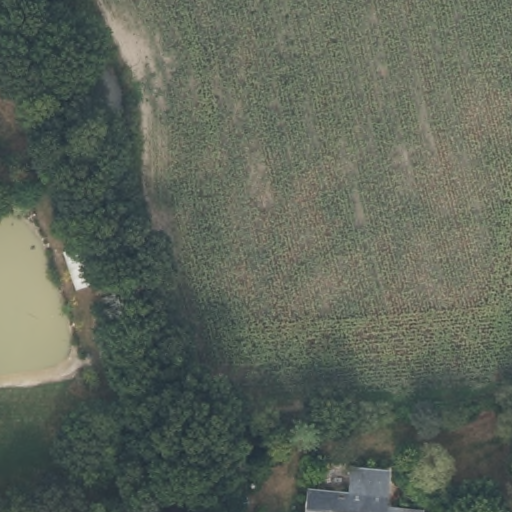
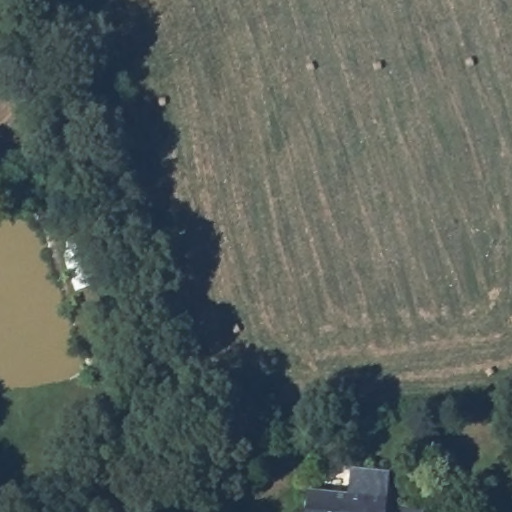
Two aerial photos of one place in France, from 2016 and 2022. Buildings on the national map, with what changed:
unchanged [(302,493),(344,497),(347,470),(374,474),(386,475),(383,508),(413,511),(419,512),(300,512),(302,493)]

